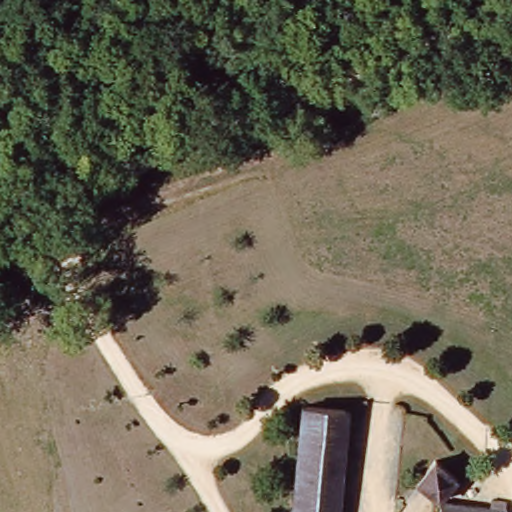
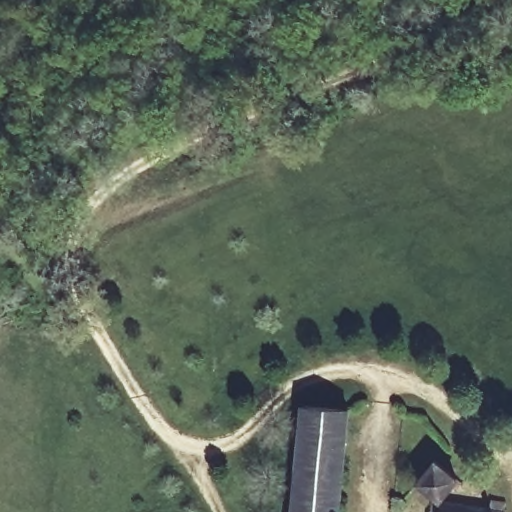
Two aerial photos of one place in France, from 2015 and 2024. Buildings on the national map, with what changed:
unchanged [(342,512),(296,512),(308,403),(354,407),(342,512)]
unchanged [(415,481),(435,456),(461,477),(440,502),(415,481)]
unchanged [(494,512),(445,512),(446,503),(494,512)]

